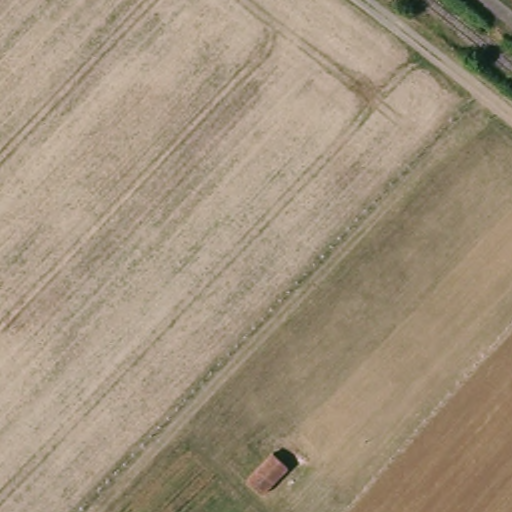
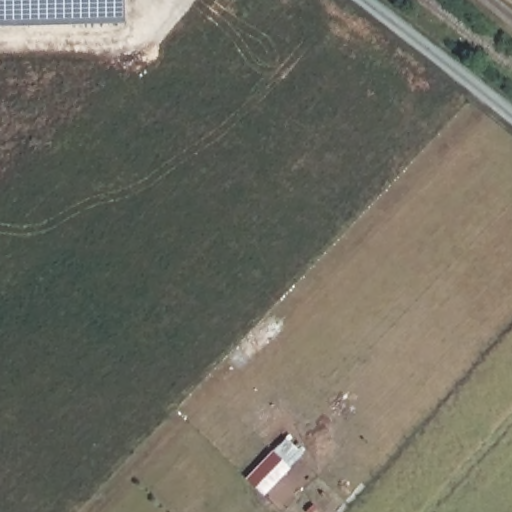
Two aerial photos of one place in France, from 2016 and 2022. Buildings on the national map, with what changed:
new [(117,0),(118,22),(0,28),(0,0),(117,0)]
unchanged [(264,496),(260,494),(252,503),(248,500),(243,505),(240,503),(235,506),(224,495),(241,475),(244,477),(264,456),(251,443),(265,429),(298,460),(264,496)]

